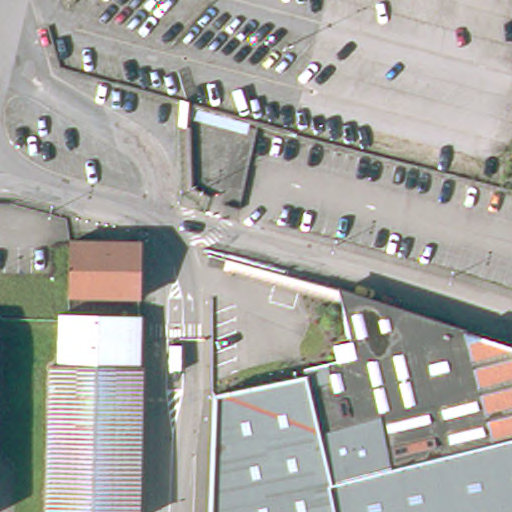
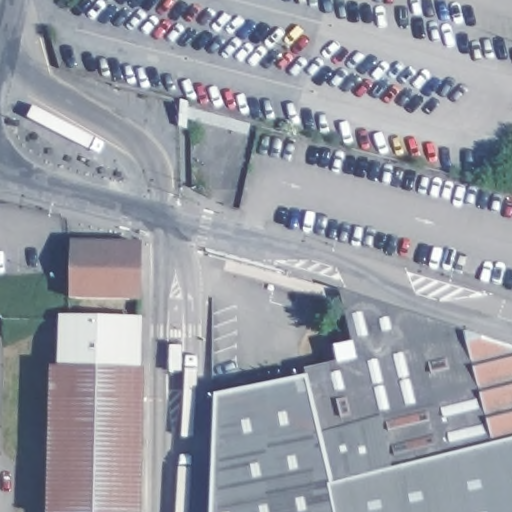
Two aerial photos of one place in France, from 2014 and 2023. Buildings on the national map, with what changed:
unchanged [(71,243),(138,244),(138,302),(70,301),(71,243)]
unchanged [(301,371),(333,364),(330,347),(348,343),(337,302),(334,290),(512,349),(512,512),(210,512),(215,397),(301,371)]
unchanged [(53,368),(56,366),(60,365),(60,314),(143,318),(139,512),(48,512),(51,371),(53,368)]

